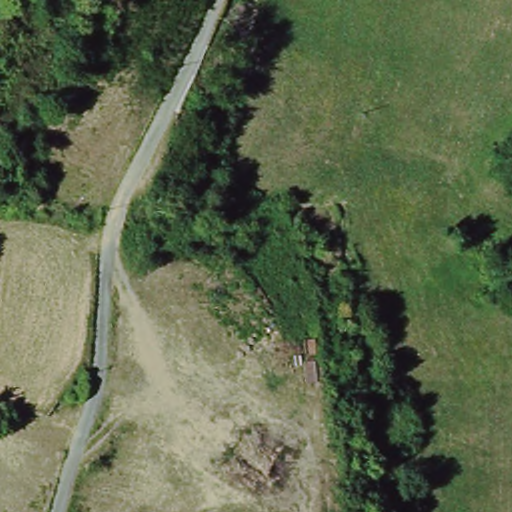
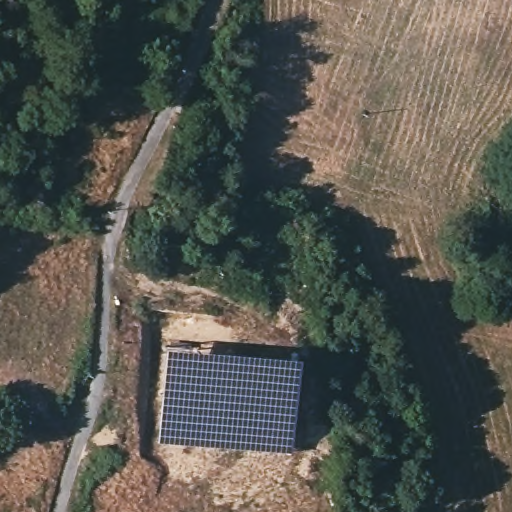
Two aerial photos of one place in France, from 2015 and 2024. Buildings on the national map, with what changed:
unchanged [(181,44),(173,58),(160,52),(165,38),(181,44)]
new [(289,451),(156,442),(163,347),(296,356),(289,451)]

